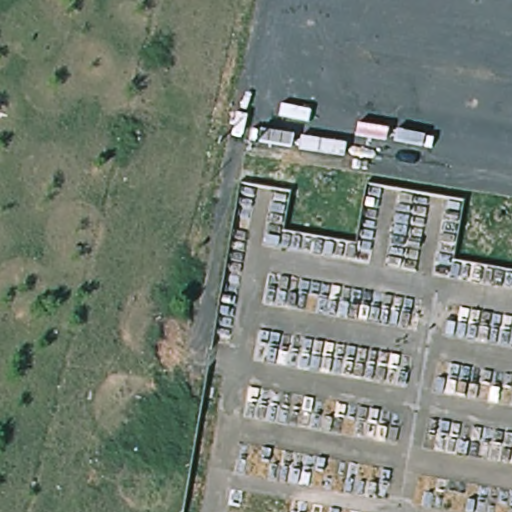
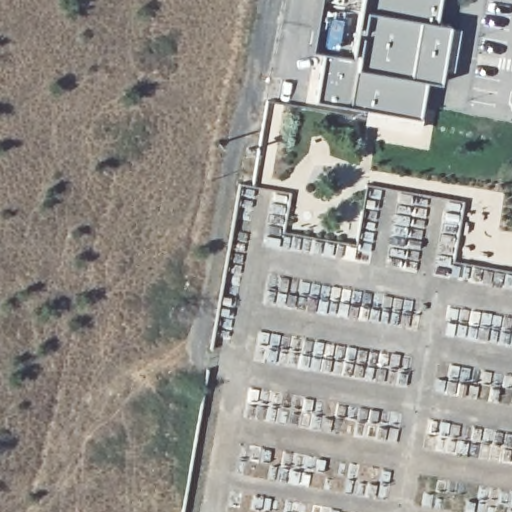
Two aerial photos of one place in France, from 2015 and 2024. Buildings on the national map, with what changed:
new [(324,51),(308,49),(317,0),(441,0),(437,24),(450,26),(441,83),(427,81),(418,116),(315,99),(324,51)]

